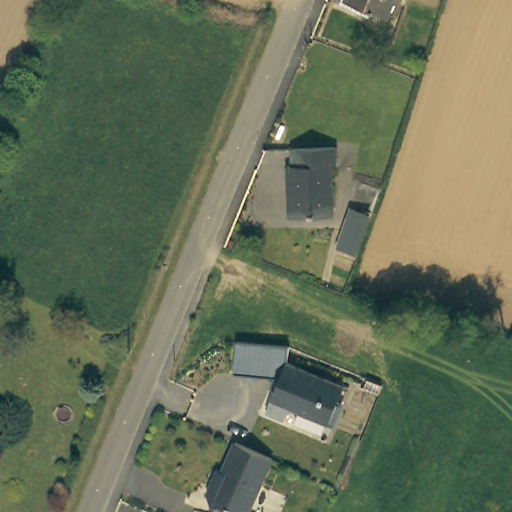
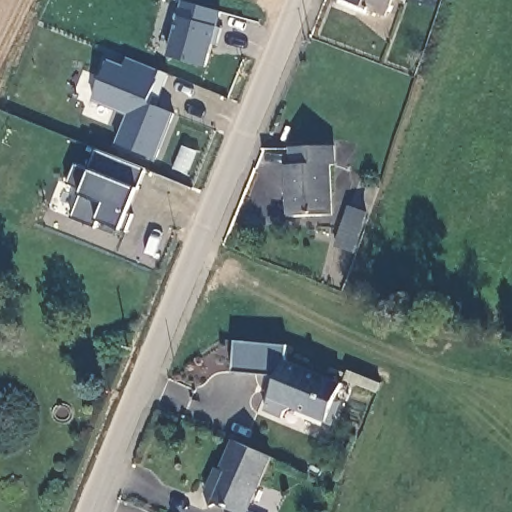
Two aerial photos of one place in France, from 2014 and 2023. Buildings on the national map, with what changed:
new [(207,67),(167,58),(183,0),(222,11),(207,67)]
unchanged [(338,1),(338,0),(389,0),(381,19),(338,1)]
new [(151,103),(176,114),(157,160),(117,143),(128,116),(93,100),(109,59),(124,66),(127,56),(157,71),(151,103)]
unchanged [(332,146),(332,165),(327,165),(328,214),(287,216),(287,166),(292,166),(291,149),(332,146)]
new [(136,186),(140,187),(123,230),(97,221),(94,226),(70,215),(81,196),(82,189),(67,183),(76,163),(89,168),(97,148),(146,170),(136,186)]
unchanged [(348,236),(360,201),(380,209),(367,244),(348,236)]
unchanged [(344,382),(337,398),(342,400),(333,422),(295,407),(287,411),(284,416),(266,409),(279,377),(275,375),(232,372),(235,340),(288,344),(287,360),(344,382)]
unchanged [(267,457),(245,510),(250,512),(224,512),(214,508),(208,509),(205,493),(215,469),(221,471),(234,442),(267,457)]

